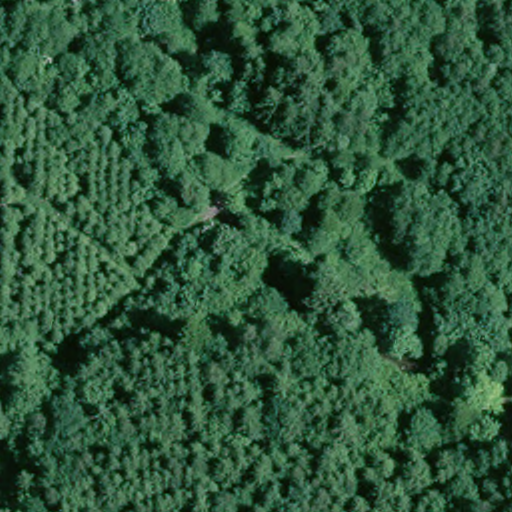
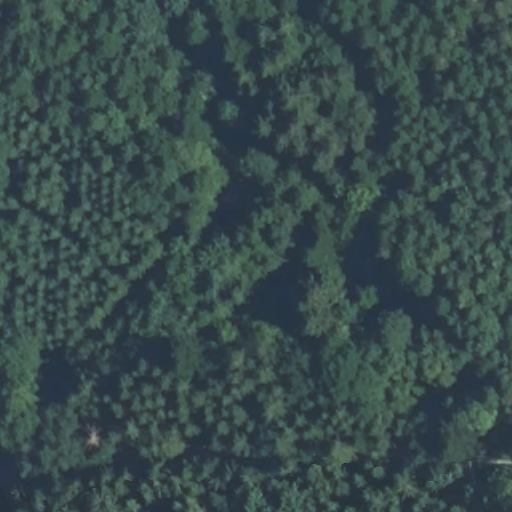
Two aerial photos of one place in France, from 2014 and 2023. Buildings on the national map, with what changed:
[]

